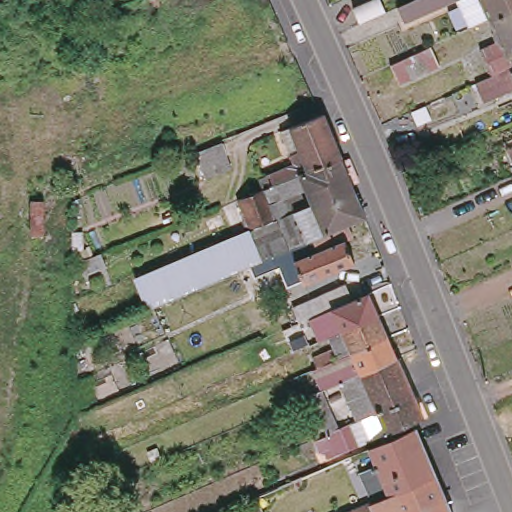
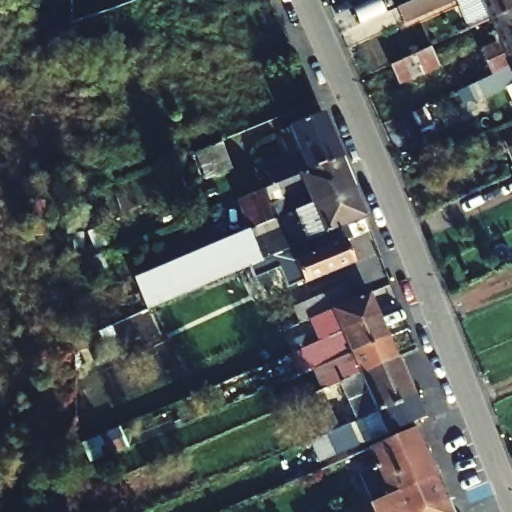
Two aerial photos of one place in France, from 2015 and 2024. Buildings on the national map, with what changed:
unchanged [(352,10),(374,0),(378,0),(385,14),(360,25),(352,10)]
unchanged [(454,0),(457,6),(405,30),(397,13),(425,0),(454,0)]
unchanged [(492,81),(481,58),(502,49),(492,25),(470,35),(457,6),(454,0),(512,0),(512,71),(510,72),(512,77),(512,93),(485,106),(477,87),(492,81)]
unchanged [(432,47),(440,66),(399,85),(390,66),(432,47)]
unchanged [(272,186),(267,176),(295,164),(292,155),(300,151),(291,128),(321,115),(324,114),(341,157),(301,174),(272,186)]
unchanged [(225,146),(235,172),(210,182),(200,156),(225,146)]
unchanged [(507,154),(512,151),(512,164),(507,154)]
unchanged [(341,157),(352,186),(313,203),(301,174),(341,157)]
unchanged [(352,186),(365,217),(314,239),(305,218),(317,213),(313,203),(352,186)]
unchanged [(251,269),(245,272),(147,310),(130,280),(252,228),(240,199),(267,189),(278,217),(292,211),(305,243),(291,249),(292,251),(291,251),(275,259),(280,270),(256,281),(257,284),(250,287),(247,278),(253,275),(251,269)]
unchanged [(352,239),(345,241),(355,263),(305,285),(291,251),(292,251),(320,239),(347,227),(352,239)]
unchanged [(304,343),(328,332),(322,318),(311,323),(304,308),(345,288),(352,305),(370,297),(380,319),(332,340),(317,347),(320,354),(310,358),(308,351),(304,343)]
unchanged [(320,379),(317,373),(314,365),(337,354),(332,340),(380,319),(389,341),(341,363),(326,369),(328,375),(320,379)]
unchanged [(310,329),(300,334),(287,340),(285,335),(308,325),(310,329)]
unchanged [(342,388),(327,395),(323,386),(347,376),(341,363),(389,341),(398,363),(342,388)]
unchanged [(415,402),(363,424),(359,426),(342,388),(398,363),(415,402)]
unchanged [(360,450),(330,463),(325,455),(332,452),(327,440),(310,402),(322,396),(340,435),(352,429),(360,450)]
unchanged [(415,402),(423,422),(414,426),(373,444),(363,424),(415,402)]
unchanged [(372,508),(360,478),(352,460),(357,458),(368,453),(407,436),(416,432),(437,481),(374,508),(372,508)]
unchanged [(280,491),(290,487),(299,483),(303,481),(316,512),(289,512),(280,491)]
unchanged [(450,512),(363,512),(372,508),(374,508),(437,481),(450,512)]

